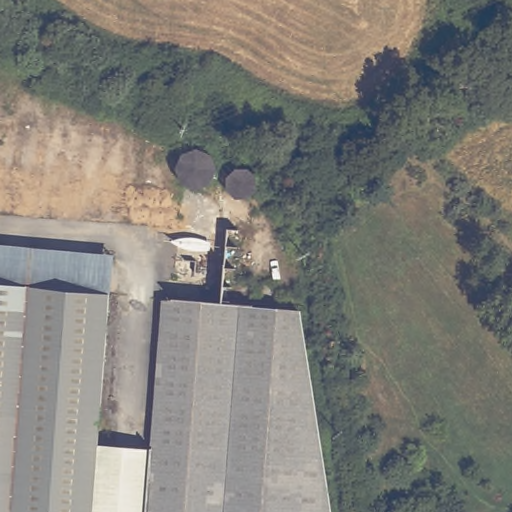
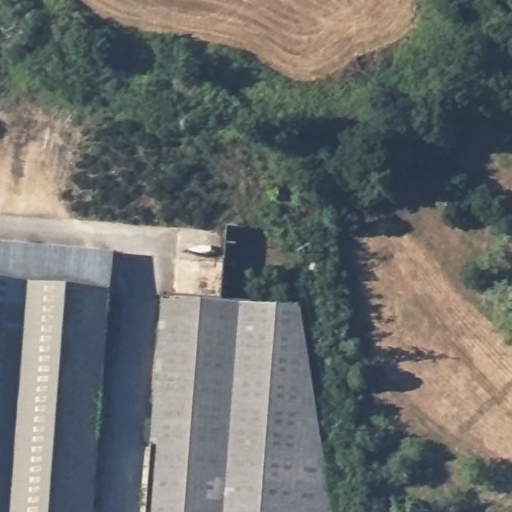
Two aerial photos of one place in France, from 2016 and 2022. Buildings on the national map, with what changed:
unchanged [(210,156),(216,170),(209,184),(195,190),(181,184),(176,170),(182,156),(196,150),(210,156)]
unchanged [(236,199),(226,191),(227,179),(235,170),(247,170),(256,179),(256,191),(248,199),(236,199)]
unchanged [(112,257),(109,296),(0,288),(0,248),(112,257)]
unchanged [(109,296),(97,445),(92,512),(0,512),(0,288),(109,296)]
unchanged [(298,311),(329,512),(147,512),(152,450),(163,301),(298,311)]
unchanged [(147,512),(92,512),(97,445),(152,450),(147,512)]

